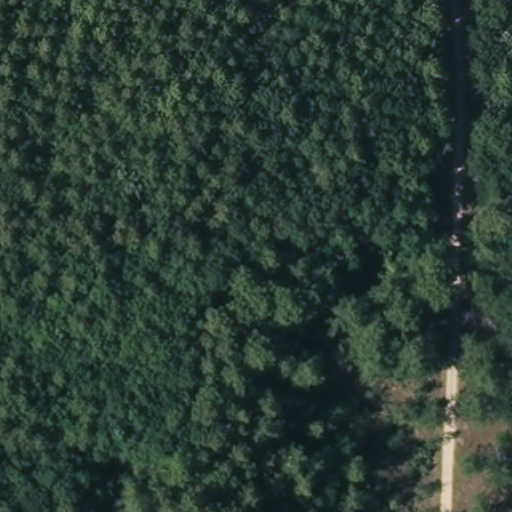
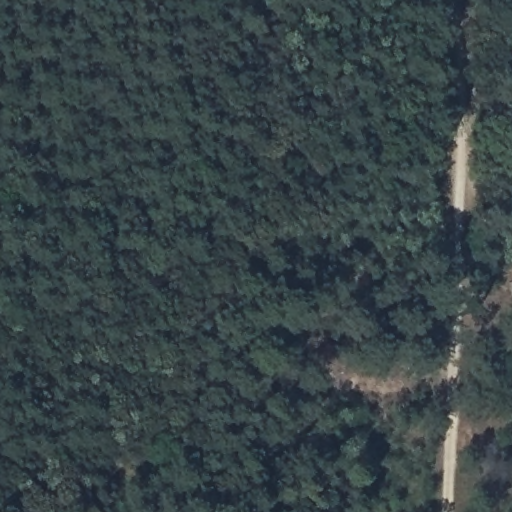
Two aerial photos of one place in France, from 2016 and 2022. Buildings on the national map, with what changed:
[]

